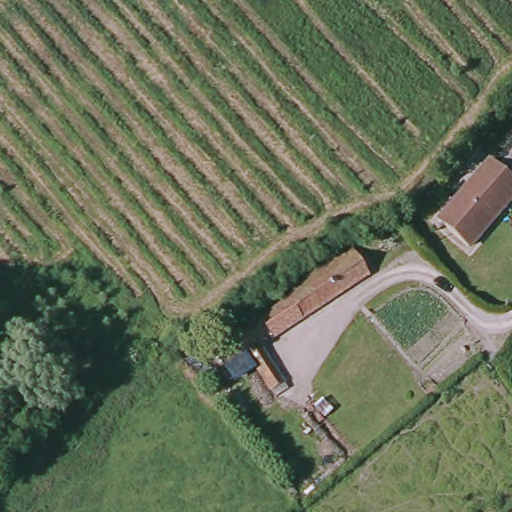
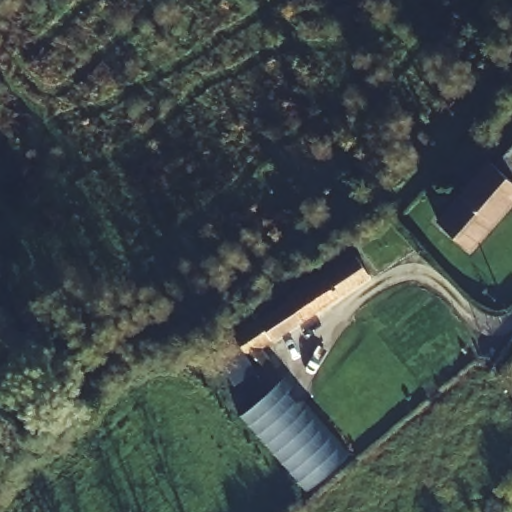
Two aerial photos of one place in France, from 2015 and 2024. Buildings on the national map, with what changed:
unchanged [(495,162),(512,143),(512,198),(496,215),(495,214),(480,230),(482,232),(470,247),(440,221),(491,159),(495,162)]
unchanged [(308,293),(357,263),(367,275),(262,349),(276,374),(261,385),(241,360),(247,356),(231,335),(302,281),(308,293)]
new [(350,453),(307,493),(238,416),(282,376),(350,453)]

